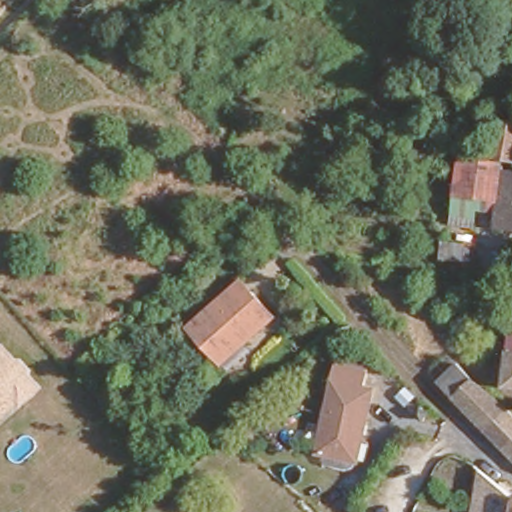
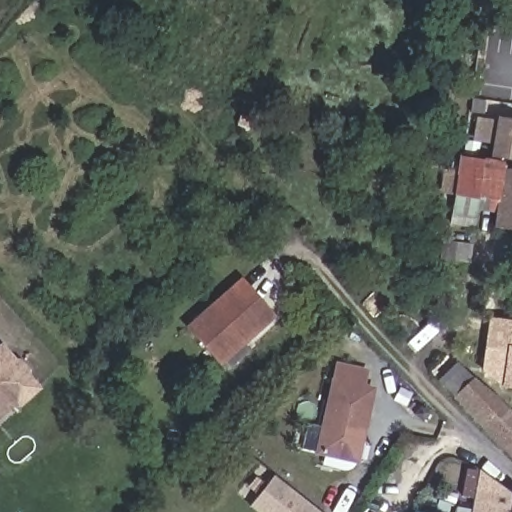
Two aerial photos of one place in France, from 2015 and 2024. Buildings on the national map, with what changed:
unchanged [(507,141),(487,137),(490,118),(510,121),(510,119),(512,119),(512,155),(505,154),(507,141)]
unchanged [(497,209),(473,205),(472,215),(451,212),(458,157),(502,163),(502,166),(512,167),(512,224),(495,221),(497,209)]
unchanged [(470,253),(449,251),(443,250),(446,234),(452,235),(472,237),(470,253)]
unchanged [(247,285),(278,318),(227,363),(197,329),(247,285)]
unchanged [(491,317),(512,321),(512,383),(482,378),(491,317)]
unchanged [(1,348),(12,363),(17,364),(26,374),(25,379),(35,392),(17,407),(14,403),(0,414),(0,348),(1,348)]
unchanged [(444,352),(487,393),(512,417),(512,455),(428,368),(444,352)]
unchanged [(365,377),(359,392),(368,396),(355,430),(349,428),(335,465),(302,452),(336,366),(365,377)]
unchanged [(512,493),(512,512),(472,512),(478,471),(512,493)]
new [(319,512),(258,512),(252,507),(276,478),(319,512)]

